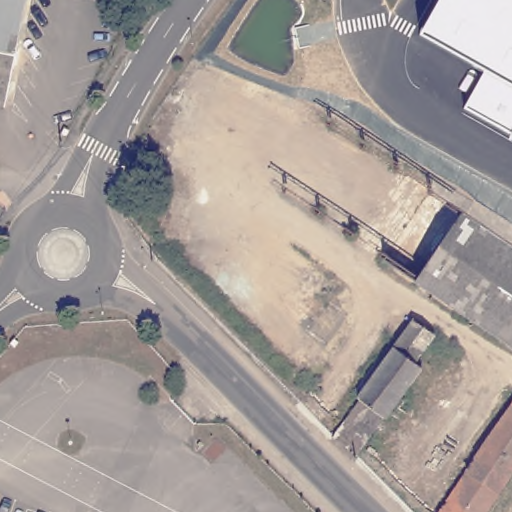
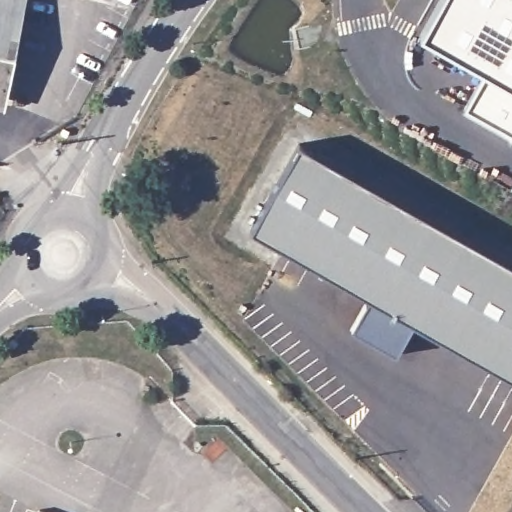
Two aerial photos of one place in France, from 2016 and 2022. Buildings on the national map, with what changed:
unchanged [(0,95),(0,0),(23,0),(5,95),(0,95)]
unchanged [(489,73),(420,34),(438,0),(512,0),(512,136),(465,109),(489,73)]
demolished [(224,51),(238,60),(232,69),(218,60),(224,51)]
new [(512,265),(512,376),(414,321),(397,353),(351,328),(367,297),(251,229),(297,145),(512,265)]
demolished [(512,146),(512,346),(419,283),(512,146)]
demolished [(319,346),(303,334),(320,311),(318,310),(312,318),(300,309),(311,294),(247,247),(259,231),(332,286),(320,302),(314,297),(313,300),(323,307),(332,294),(348,306),(319,346)]
demolished [(372,380),(370,378),(427,301),(448,316),(429,343),(434,347),(371,435),(346,418),(372,380)]
demolished [(512,472),(486,512),(439,512),(512,406),(512,472)]

